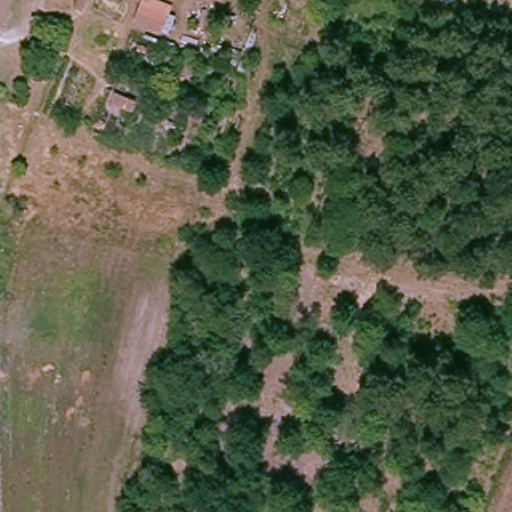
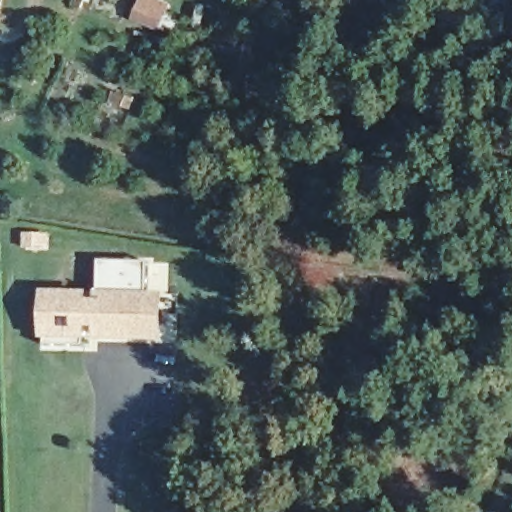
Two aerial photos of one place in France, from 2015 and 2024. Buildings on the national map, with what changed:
unchanged [(0,5),(0,0),(2,0),(0,5)]
new [(161,335),(146,335),(97,333),(98,321),(85,320),(84,343),(44,342),(46,291),(85,292),(85,301),(97,302),(98,257),(148,259),(147,293),(162,293),(161,335)]

